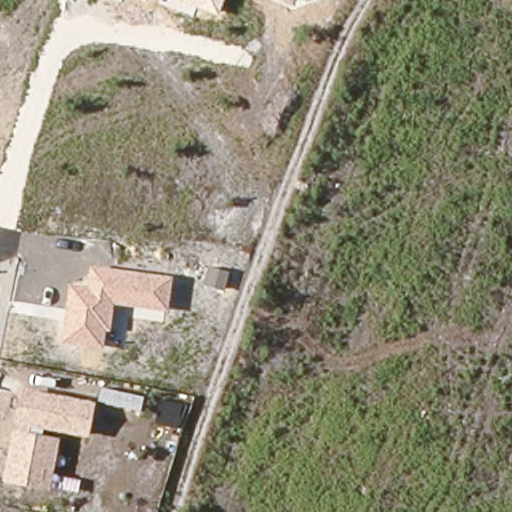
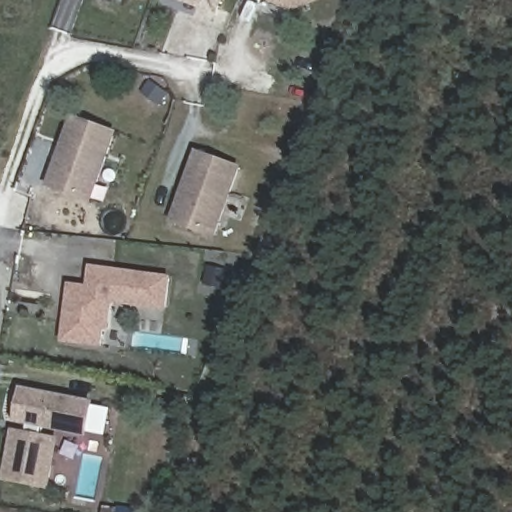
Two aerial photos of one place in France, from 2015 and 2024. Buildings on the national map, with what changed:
unchanged [(147,1),(146,0),(147,0),(147,1)]
unchanged [(218,14),(180,0),(224,0),(218,14)]
unchanged [(295,7),(277,0),(314,0),(295,7)]
new [(94,202),(47,188),(73,116),(120,131),(94,202)]
new [(218,239),(172,223),(198,151),(244,167),(218,239)]
unchanged [(168,311),(114,305),(110,332),(106,332),(103,347),(61,342),(70,285),(88,287),(91,267),(173,277),(168,311)]
unchanged [(89,437),(45,428),(44,435),(59,437),(50,490),(3,482),(12,431),(29,432),(30,426),(15,423),(21,388),(96,402),(89,437)]

